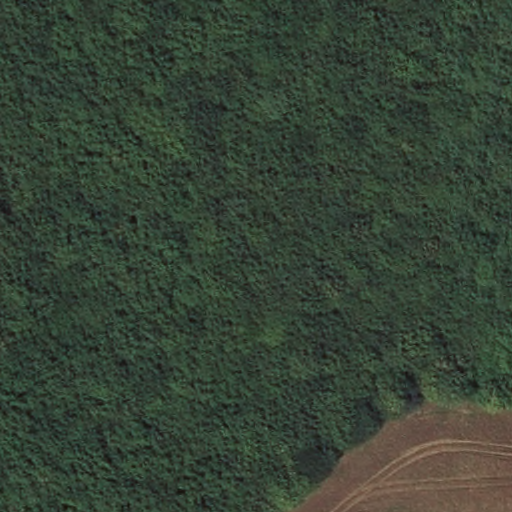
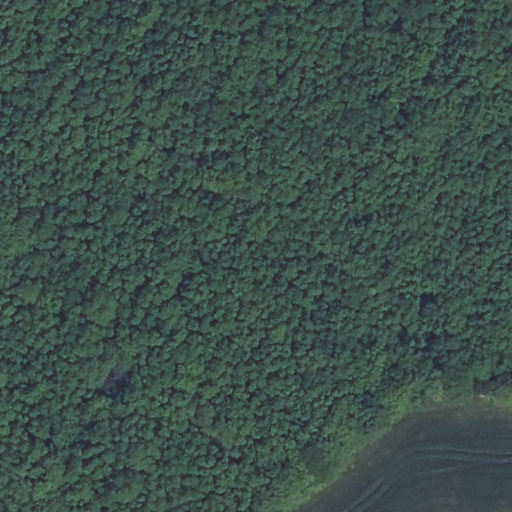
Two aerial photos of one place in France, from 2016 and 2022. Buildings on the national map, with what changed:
[]

